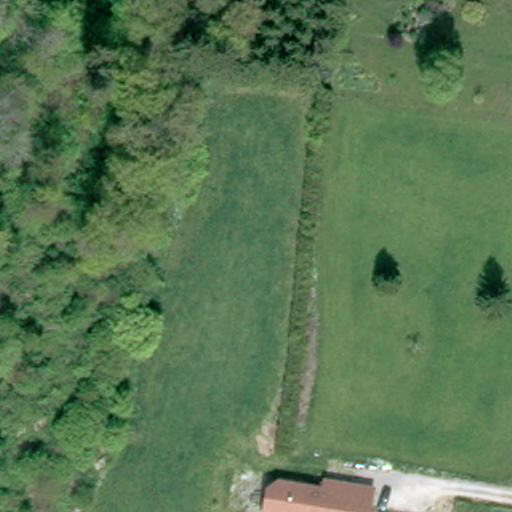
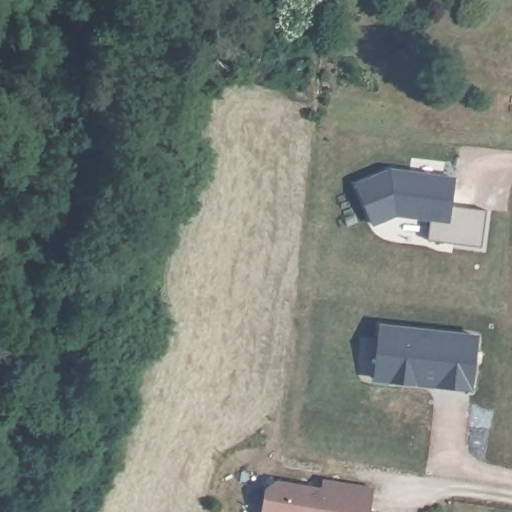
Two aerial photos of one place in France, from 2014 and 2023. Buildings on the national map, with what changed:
new [(396,170),(458,180),(455,205),(490,210),(486,247),(432,240),(435,220),(401,215),(378,224),(362,185),(396,170)]
new [(384,326),(480,337),(474,390),(439,385),(440,379),(419,377),(417,383),(395,381),(379,379),(380,365),(384,326)]
unchanged [(322,485),(322,475),(377,485),(373,512),(267,512),(272,481),(322,485)]

